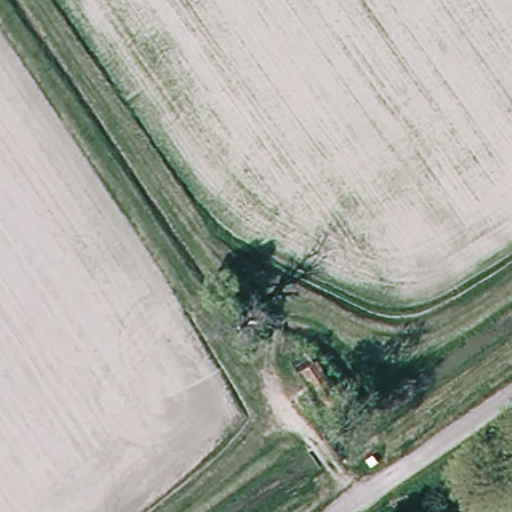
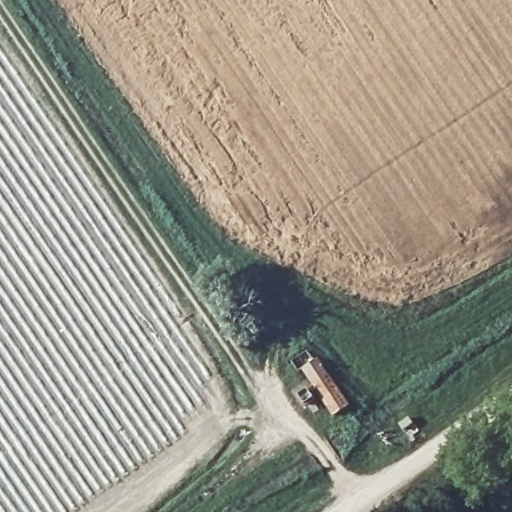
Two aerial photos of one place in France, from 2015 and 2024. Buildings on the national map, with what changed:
unchanged [(296,369),(292,371),(284,356),(299,346),(309,359),(312,356),(342,402),(326,414),(296,369)]
unchanged [(304,394),(295,401),(287,389),(295,383),(304,394)]

